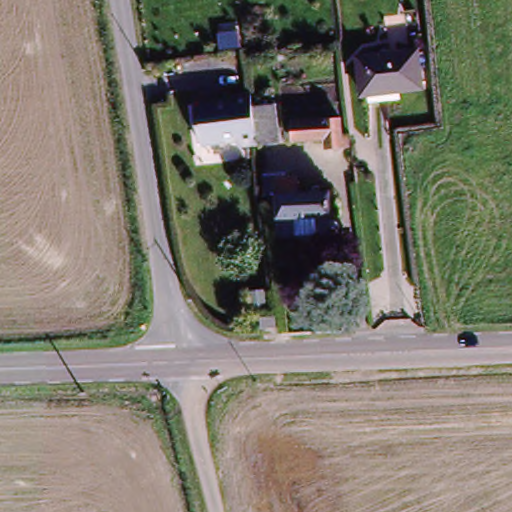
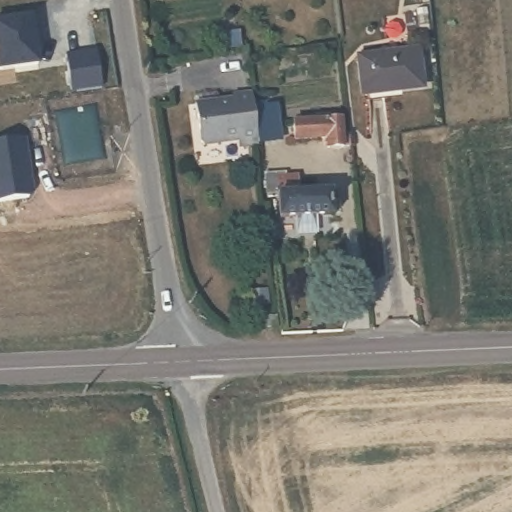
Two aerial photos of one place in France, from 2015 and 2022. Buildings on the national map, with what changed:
new [(40,66),(0,71),(0,24),(33,19),(40,66)]
new [(98,48),(104,87),(71,92),(64,54),(98,48)]
unchanged [(413,51),(416,89),(360,92),(358,53),(413,51)]
unchanged [(274,143),(252,146),(253,152),(233,154),(231,143),(214,145),(214,150),(194,153),(186,106),(224,103),(224,98),(244,96),(246,108),(268,105),(274,143)]
unchanged [(323,155),(321,147),(286,150),(283,119),(291,118),(326,115),(327,121),(338,119),(341,140),(343,154),(323,155)]
new [(36,195),(33,199),(0,205),(0,145),(28,141),(36,195)]
unchanged [(301,197),(332,195),(335,220),(277,223),(275,199),(264,200),(262,185),(274,184),(297,182),(301,197)]

